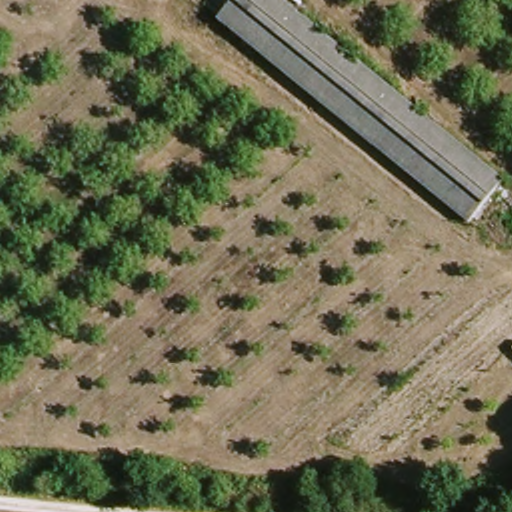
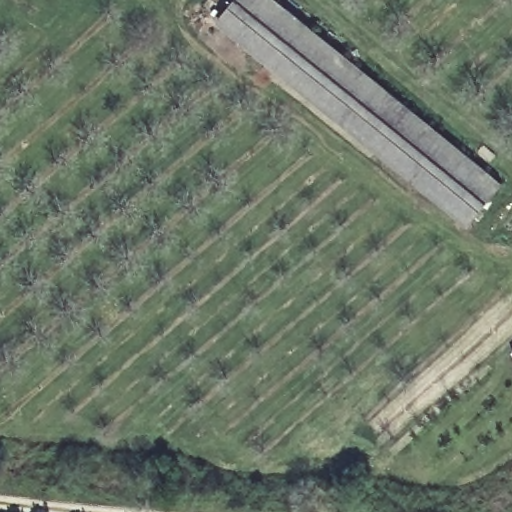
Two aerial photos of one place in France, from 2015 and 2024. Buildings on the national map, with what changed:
unchanged [(232,0),(274,0),(497,189),(466,227),(217,17),(232,0)]

